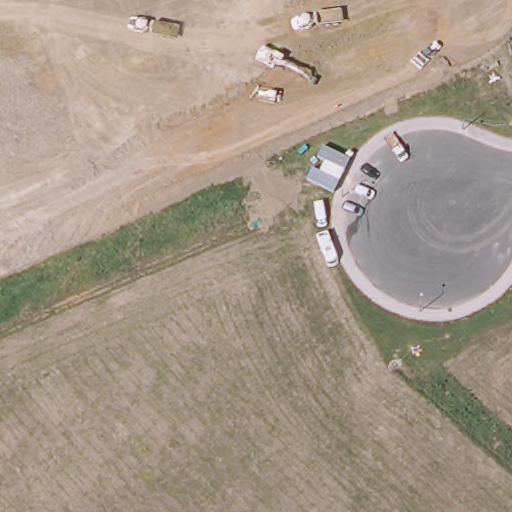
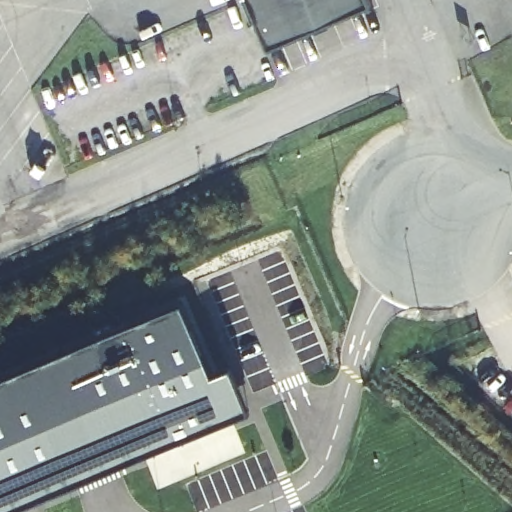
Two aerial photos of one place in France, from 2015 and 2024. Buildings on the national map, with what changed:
unchanged [(372,4),(269,47),(249,0),(371,0),(372,4)]
new [(0,512),(0,382),(182,305),(212,379),(230,371),(248,413),(18,512),(0,512)]

